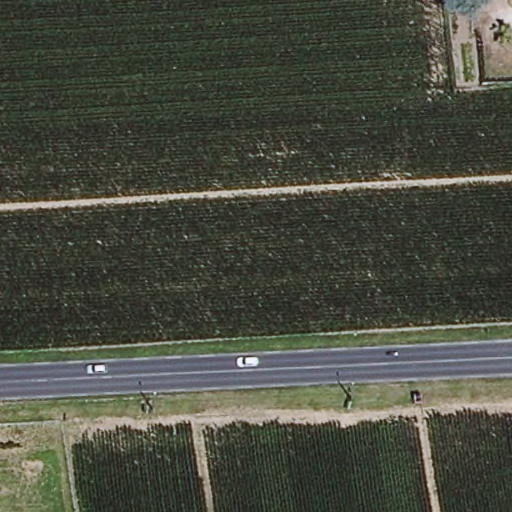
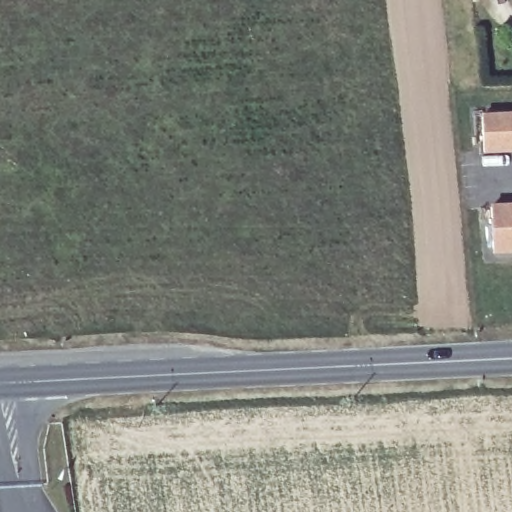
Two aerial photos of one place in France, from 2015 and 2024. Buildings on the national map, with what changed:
new [(512,113),(512,153),(485,154),(481,115),(512,113)]
new [(491,205),(512,204),(512,254),(494,255),(491,205)]

